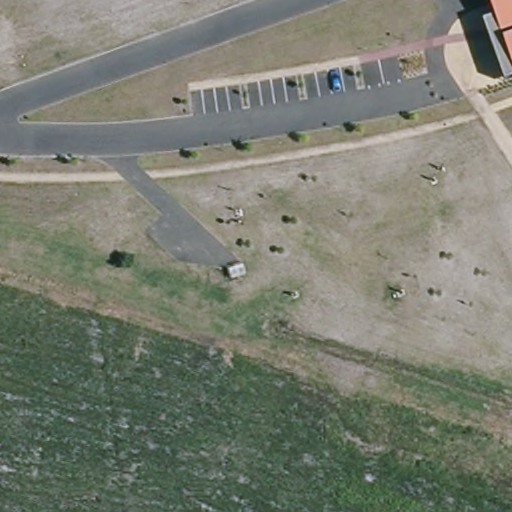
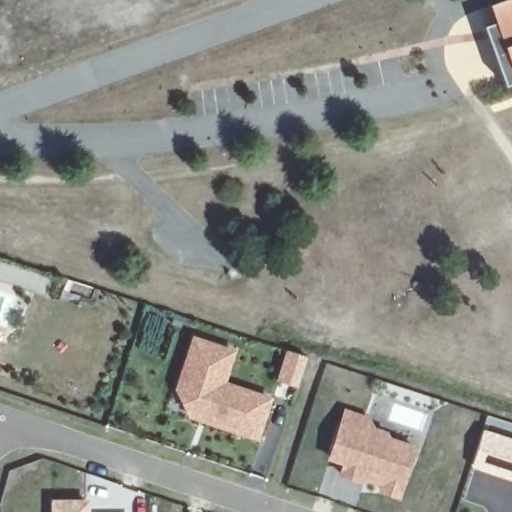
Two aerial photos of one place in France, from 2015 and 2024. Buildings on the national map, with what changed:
unchanged [(483,25),(492,21),(485,3),(492,0),(512,0),(512,82),(504,85),(483,25)]
new [(237,347),(226,379),(273,395),(258,439),(188,415),(174,388),(191,335),(237,347)]
new [(370,415),(375,426),(388,430),(390,436),(417,445),(400,499),(377,492),(380,485),(364,480),(362,485),(337,477),(342,464),(327,459),(343,407),(370,415)]
new [(512,434),(512,480),(470,466),(483,425),(512,434)]
new [(50,499),(90,498),(90,512),(50,512),(50,499)]

